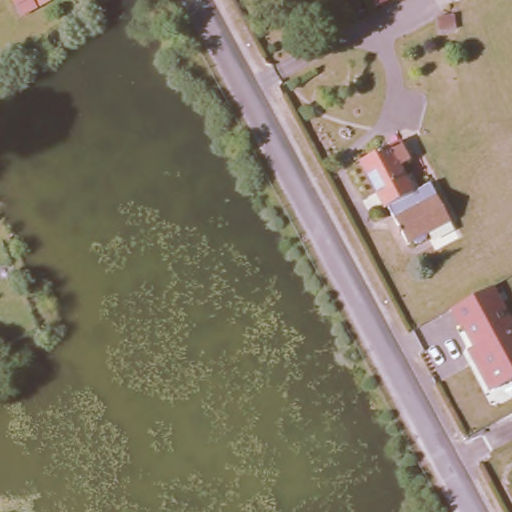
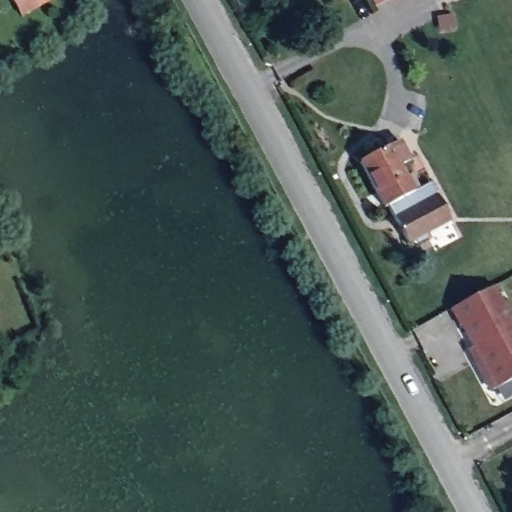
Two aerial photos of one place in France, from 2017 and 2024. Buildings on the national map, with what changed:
unchanged [(17,0),(52,0),(40,6),(24,14),(18,2),(17,0)]
unchanged [(383,3),(381,0),(388,0),(383,3)]
unchanged [(418,235),(415,237),(414,234),(408,237),(391,205),(389,206),(363,159),(398,140),(408,158),(402,162),(418,191),(434,182),(452,214),(428,226),(430,228),(428,232),(421,236),(418,235)]
unchanged [(461,327),(459,328),(450,310),(495,286),(512,319),(512,379),(489,392),(467,350),(473,349),(461,327)]

